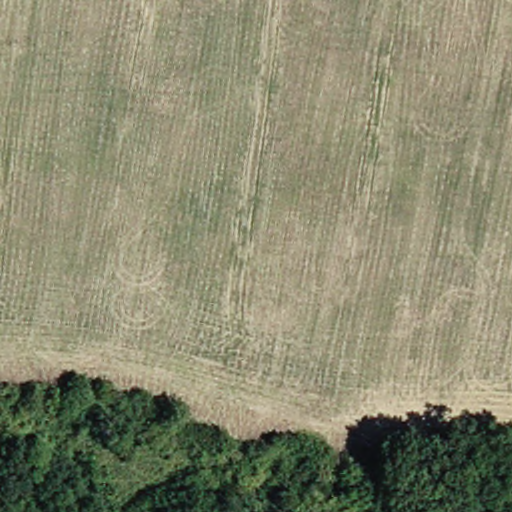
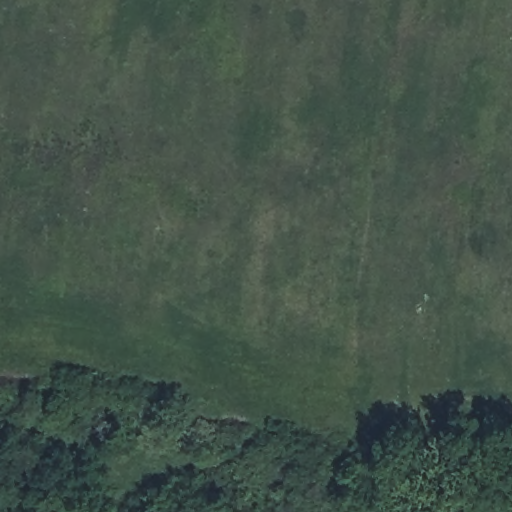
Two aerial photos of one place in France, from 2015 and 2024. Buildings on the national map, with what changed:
[]

